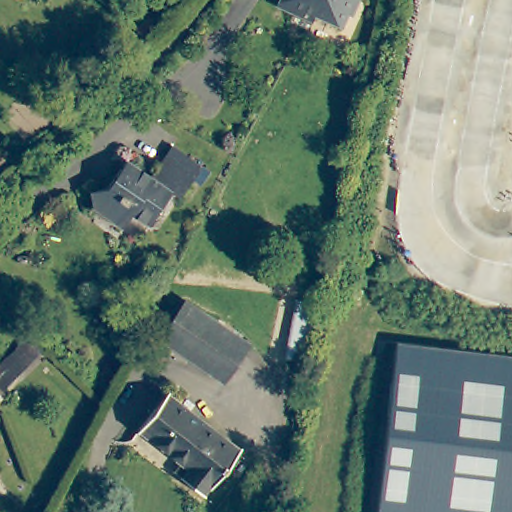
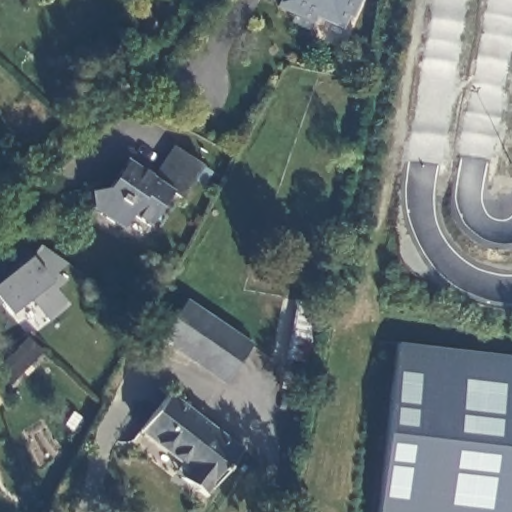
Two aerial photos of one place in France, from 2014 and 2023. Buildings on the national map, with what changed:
unchanged [(316,10),(310,24),(291,16),(295,8),(278,0),(279,0),(354,0),(343,22),(316,10)]
unchanged [(204,166),(182,198),(174,192),(150,226),(134,216),(124,230),(94,208),(91,193),(109,188),(127,161),(152,177),(175,146),(204,166)]
new [(56,272),(65,280),(56,289),(69,304),(47,322),(30,299),(10,315),(0,304),(0,282),(30,257),(39,243),(67,263),(56,272)]
unchanged [(320,304),(307,363),(285,358),(296,301),(320,304)]
unchanged [(251,346),(225,383),(161,340),(187,303),(251,346)]
unchanged [(44,352),(2,392),(0,390),(0,367),(29,338),(44,352)]
unchanged [(397,348),(512,361),(512,512),(378,512),(397,348)]
unchanged [(181,462),(141,431),(168,394),(241,451),(234,459),(206,497),(184,480),(174,472),(181,462)]

